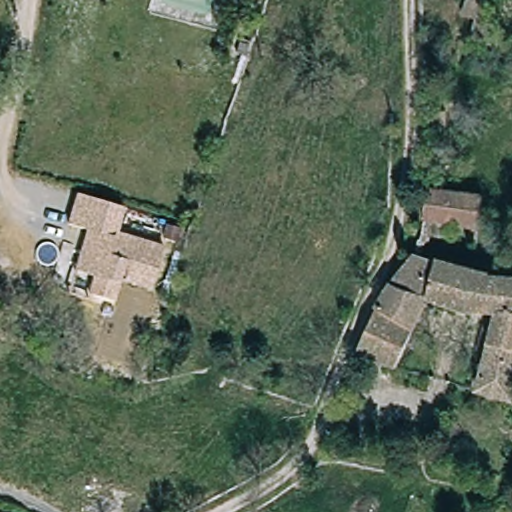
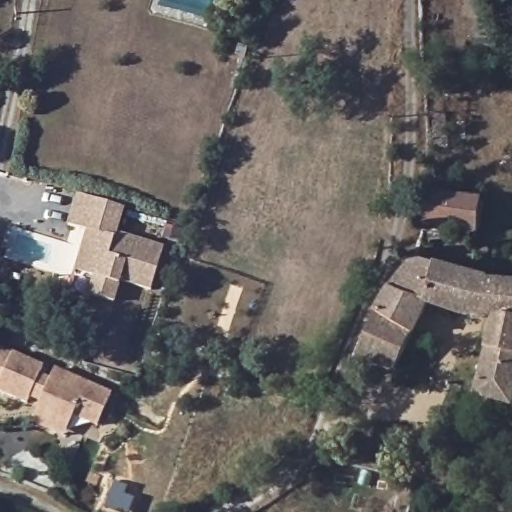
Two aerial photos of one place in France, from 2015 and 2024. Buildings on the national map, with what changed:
unchanged [(510,25),(507,48),(470,41),(472,23),(461,20),(465,0),(493,0),(489,15),(510,25)]
unchanged [(479,228),(426,219),(430,187),(483,194),(479,228)]
unchanged [(150,292),(120,284),(113,304),(86,296),(91,278),(73,272),(87,232),(66,226),(75,194),(124,209),(116,233),(165,247),(150,292)]
unchanged [(512,290),(512,413),(476,402),(480,387),(488,389),(503,326),(469,325),(435,313),(402,380),(362,368),(365,360),(379,333),(398,297),(407,287),(423,269),(423,268),(480,283),(512,290)]
new [(34,396),(29,408),(0,396),(0,355),(43,373),(40,381),(50,385),(55,375),(115,399),(103,431),(76,419),(72,427),(67,440),(33,426),(39,413),(44,401),(34,396)]
unchanged [(484,509),(512,511),(512,512),(484,512),(484,509)]

